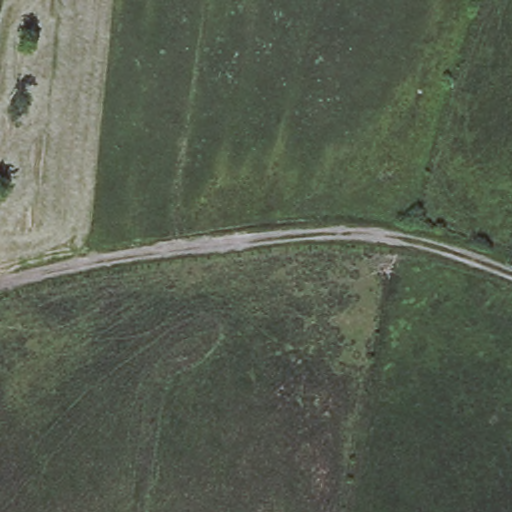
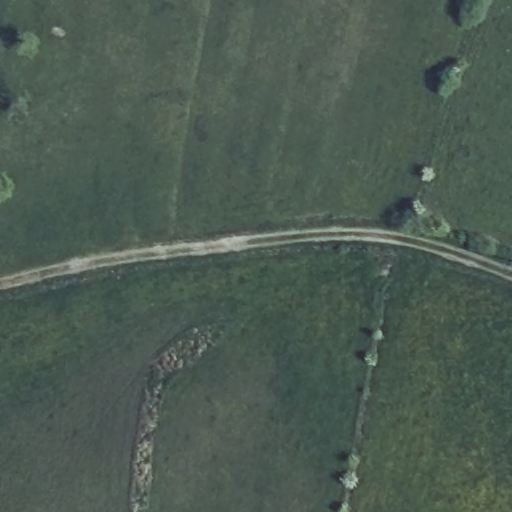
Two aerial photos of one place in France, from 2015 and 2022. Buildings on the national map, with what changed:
[]

